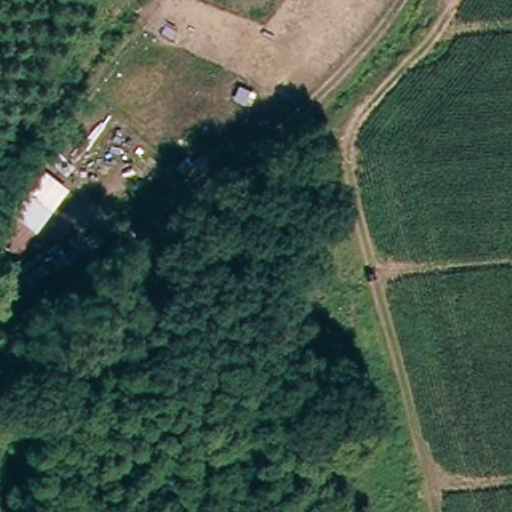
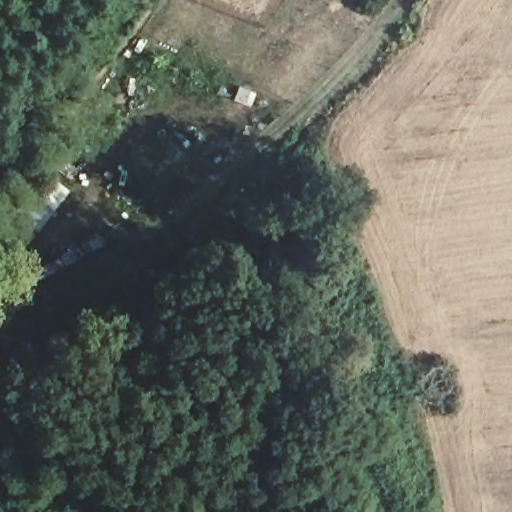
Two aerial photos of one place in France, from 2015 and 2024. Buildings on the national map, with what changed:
unchanged [(45,174),(69,193),(20,254),(0,237),(0,231),(45,174)]

